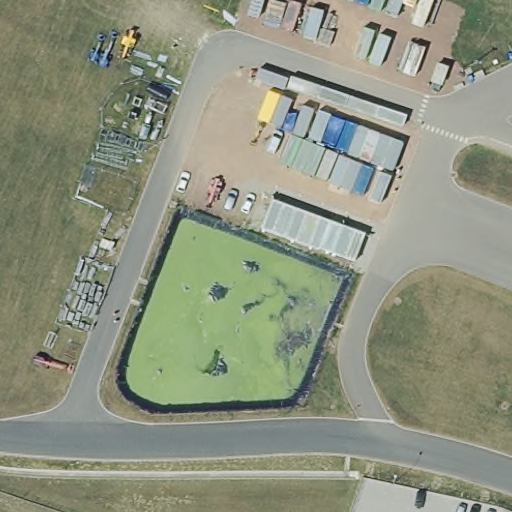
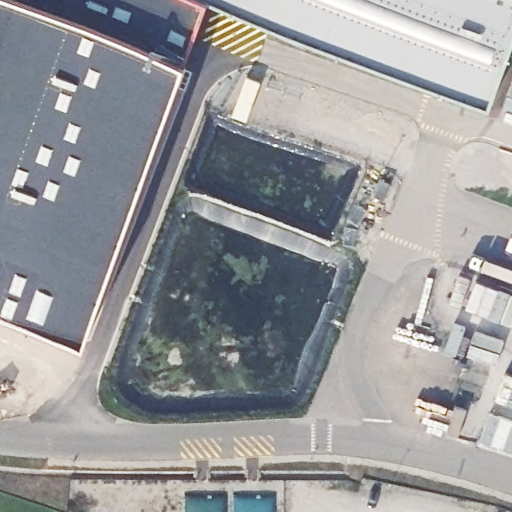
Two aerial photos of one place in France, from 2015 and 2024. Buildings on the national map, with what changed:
new [(0,312),(0,0),(4,0),(184,65),(85,343),(0,312)]
new [(4,0),(207,0),(184,65),(4,0)]
new [(207,0),(512,0),(512,42),(490,105),(207,0)]

